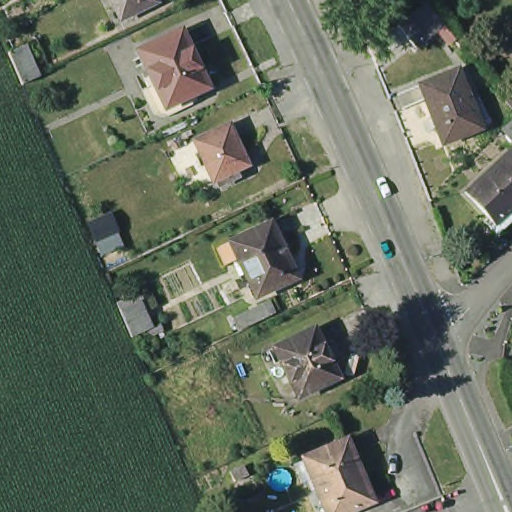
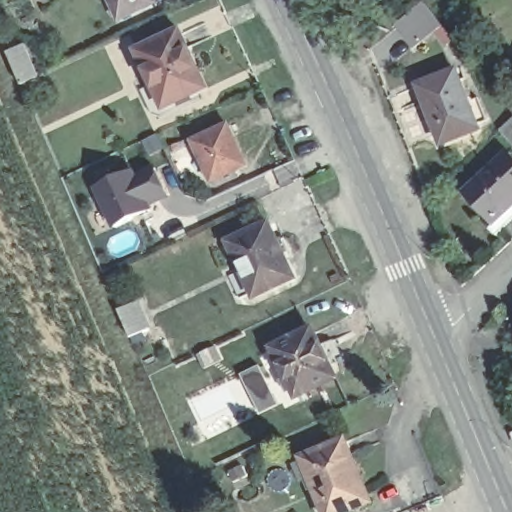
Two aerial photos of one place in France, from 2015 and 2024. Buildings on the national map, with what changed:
unchanged [(155,9),(119,25),(107,0),(167,0),(167,2),(155,7),(155,9)]
unchanged [(414,44),(397,24),(425,1),(441,22),(414,44)]
unchanged [(145,81),(157,75),(142,43),(185,22),(212,79),(169,101),(157,106),(145,81)]
unchanged [(24,89),(9,57),(27,49),(41,81),(24,89)]
unchanged [(451,76),(472,132),(435,147),(415,89),(451,76)]
unchanged [(512,90),(512,91),(512,111),(502,98),(512,90)]
unchanged [(512,140),(502,128),(511,119),(512,114),(512,140)]
unchanged [(229,125),(249,168),(214,185),(194,142),(229,125)]
unchanged [(480,222),(483,218),(455,187),(500,146),(512,160),(512,193),(510,194),(512,197),(512,204),(485,228),(480,222)]
demolished [(123,159),(135,180),(107,196),(95,174),(123,159)]
new [(154,206),(155,210),(114,230),(95,188),(135,169),(137,173),(157,164),(172,197),(154,206)]
unchanged [(270,295),(267,287),(256,292),(230,239),(271,220),(297,274),(282,280),(286,288),(270,295)]
unchanged [(137,302),(150,330),(132,339),(119,310),(137,302)]
unchanged [(282,373),(290,370),(277,342),(317,324),(340,376),(301,394),(297,384),(289,387),(282,373)]
unchanged [(346,435),(372,497),(335,512),(325,512),(310,477),(301,481),(292,461),(302,457),(301,453),(346,435)]
unchanged [(243,465),(248,475),(234,482),(229,471),(243,465)]

